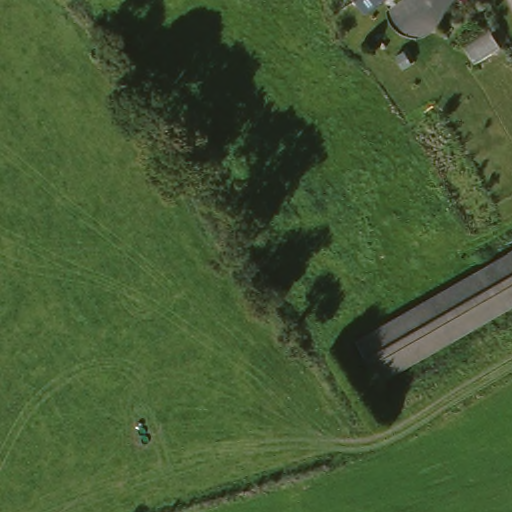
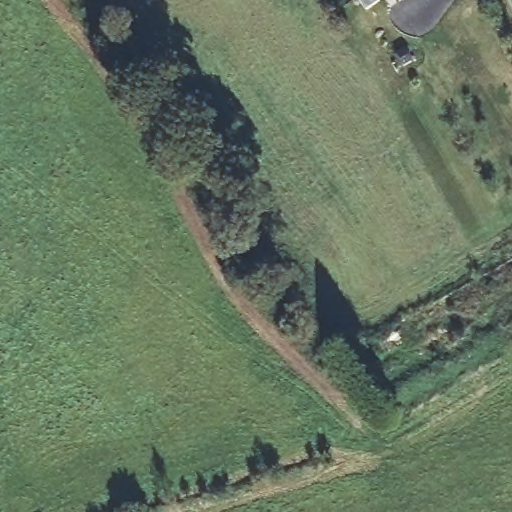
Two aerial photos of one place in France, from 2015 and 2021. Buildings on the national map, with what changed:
unchanged [(379,6),(372,0),(386,0),(379,6)]
demolished [(512,245),(512,296),(385,373),(364,336),(512,245)]

